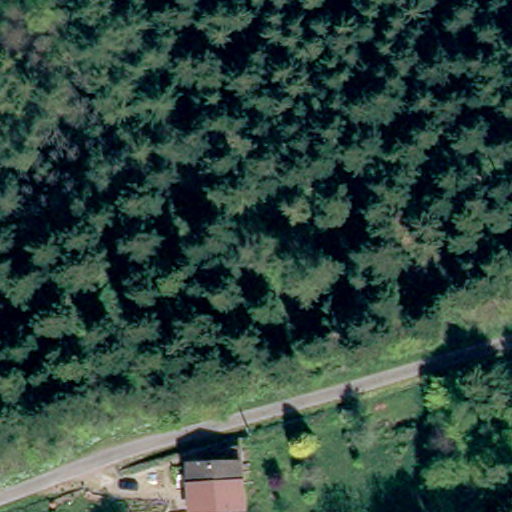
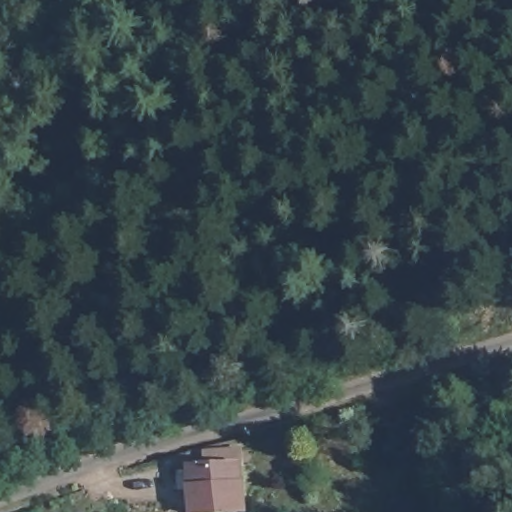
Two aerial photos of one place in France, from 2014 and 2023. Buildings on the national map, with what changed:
unchanged [(187,468),(206,466),(205,452),(242,449),(244,510),(224,511),(224,512),(191,512),(187,468)]

